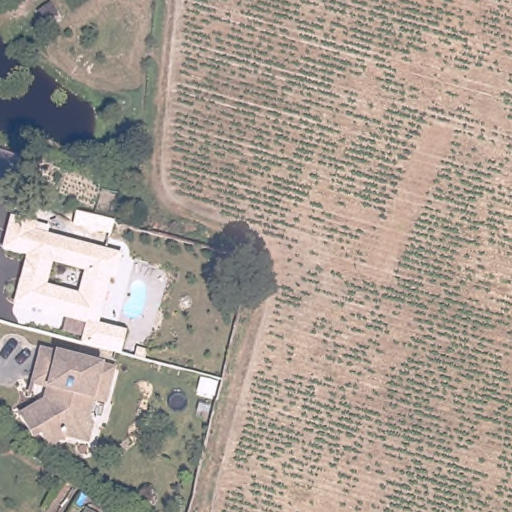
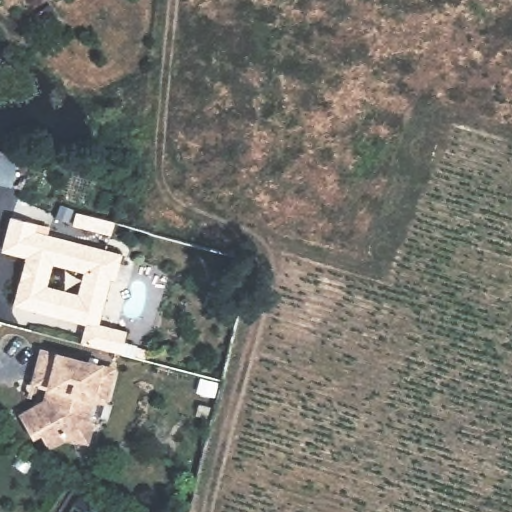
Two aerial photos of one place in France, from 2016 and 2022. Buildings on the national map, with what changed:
unchanged [(114,222),(109,240),(85,233),(90,216),(114,222)]
unchanged [(39,223),(36,232),(122,254),(115,280),(109,279),(99,324),(128,331),(122,354),(80,343),(85,324),(12,304),(22,258),(2,252),(10,217),(39,223)]
unchanged [(104,402),(91,399),(87,415),(91,422),(86,442),(65,436),(47,447),(39,433),(31,437),(19,416),(45,401),(29,397),(32,383),(41,351),(112,370),(104,402)]

